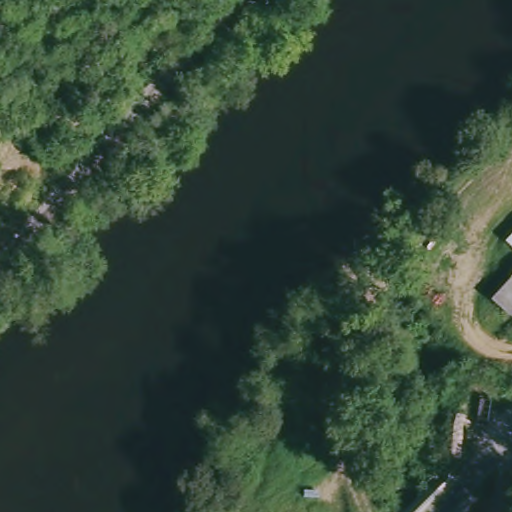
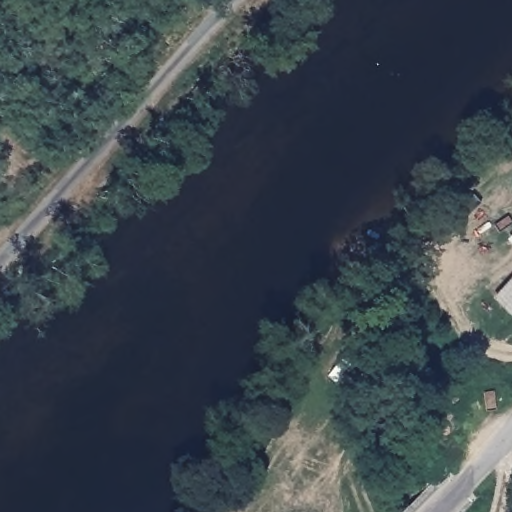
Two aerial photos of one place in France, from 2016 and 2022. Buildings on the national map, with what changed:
unchanged [(512,238),(512,243),(510,240),(512,238)]
unchanged [(512,270),(512,315),(490,296),(506,278),(512,270)]

